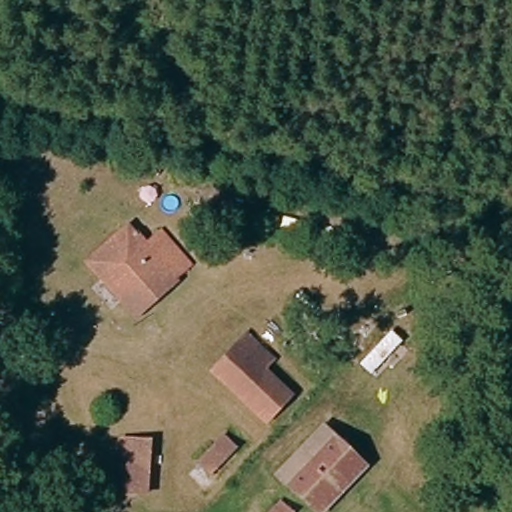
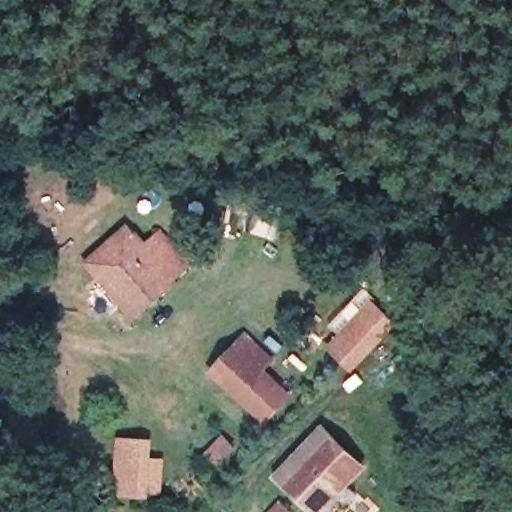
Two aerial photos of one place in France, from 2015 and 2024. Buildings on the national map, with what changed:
unchanged [(148,241),(162,227),(192,262),(136,321),(84,262),(128,219),(148,241)]
new [(328,346),(371,299),(398,322),(353,371),(328,346)]
unchanged [(241,341),(294,394),(265,422),(214,368),(241,341)]
unchanged [(274,479),(325,431),(333,440),(363,470),(318,512),(305,512),(283,490),(274,479)]
unchanged [(238,452),(214,477),(220,485),(208,498),(185,477),(222,435),(238,452)]
unchanged [(149,502),(114,500),(118,439),(152,440),(149,502)]

